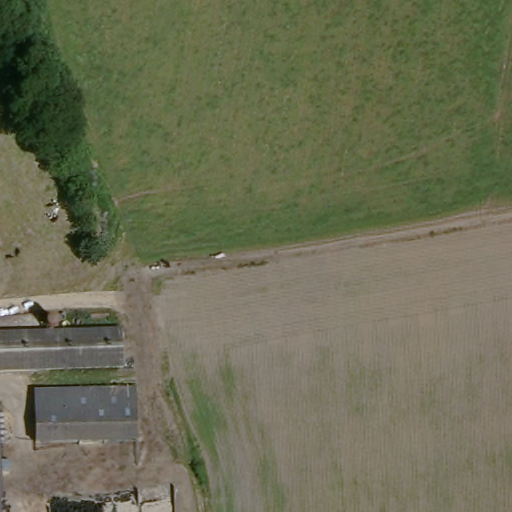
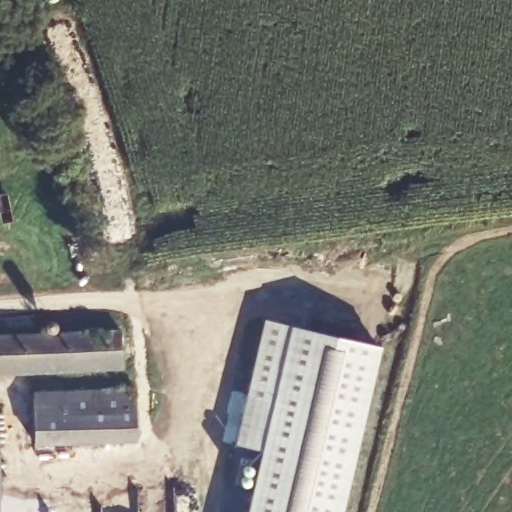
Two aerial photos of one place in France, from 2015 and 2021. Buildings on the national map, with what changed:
new [(267,454),(240,448),(268,325),(382,351),(346,512),(254,512),(267,454)]
unchanged [(122,370),(0,372),(0,335),(120,333),(122,370)]
unchanged [(132,391),(136,442),(35,446),(34,395),(132,391)]

